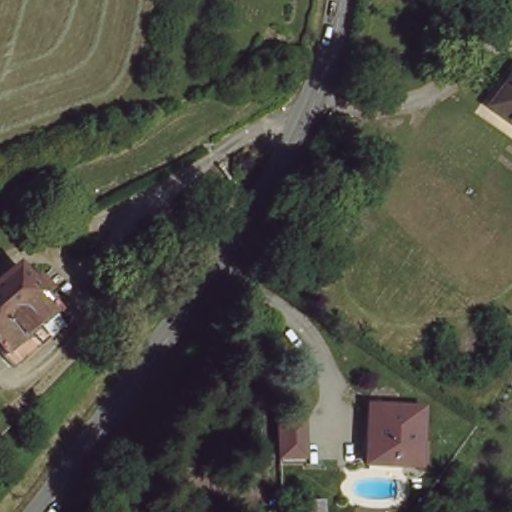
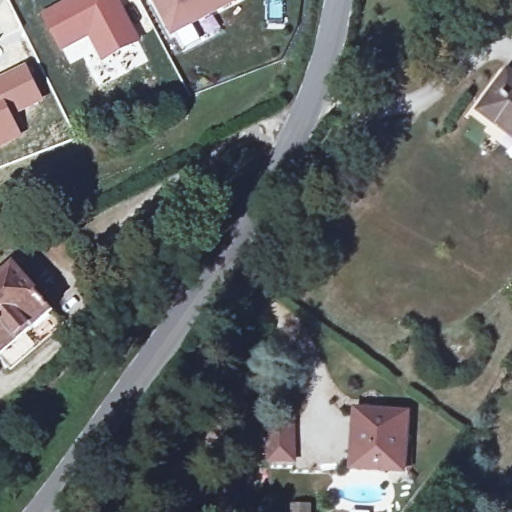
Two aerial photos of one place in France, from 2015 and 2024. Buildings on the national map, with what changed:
new [(119,0),(140,39),(101,61),(88,37),(60,51),(39,12),(61,0),(119,0)]
new [(161,0),(229,0),(176,28),(161,0)]
new [(44,100),(13,117),(22,137),(0,147),(0,80),(27,66),(44,100)]
unchanged [(512,79),(512,136),(476,110),(503,73),(512,79)]
unchanged [(30,268),(43,283),(32,295),(55,320),(2,367),(0,365),(0,271),(6,265),(18,278),(30,268)]
unchanged [(406,413),(402,467),(352,463),(356,410),(406,413)]

